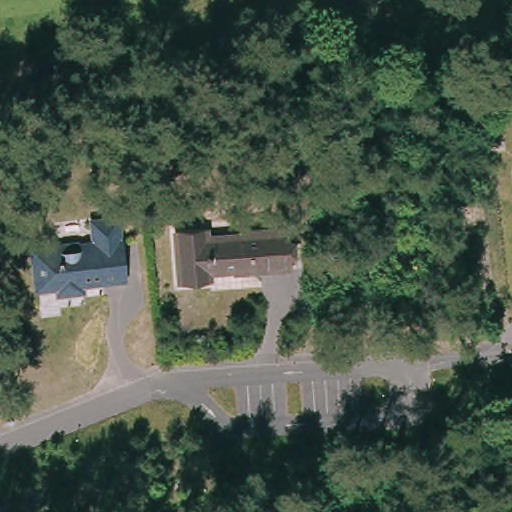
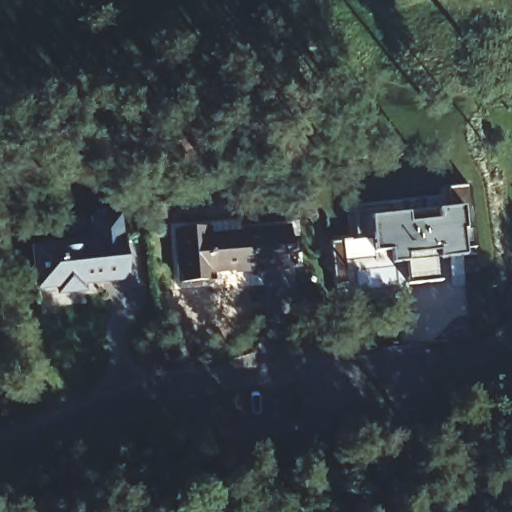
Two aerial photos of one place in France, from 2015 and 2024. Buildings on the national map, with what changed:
new [(387,204),(387,215),(444,209),(442,188),(466,185),(472,255),(436,259),(439,281),(407,284),(402,248),(372,251),(370,237),(352,240),(349,209),(387,204)]
unchanged [(132,258),(87,262),(88,270),(64,272),(63,264),(44,266),(40,228),(101,222),(99,199),(124,197),(126,220),(127,220),(132,258)]
unchanged [(205,232),(207,244),(244,240),(242,227),(292,222),(296,265),(262,268),(262,263),(210,268),(210,278),(180,282),(176,235),(205,232)]

